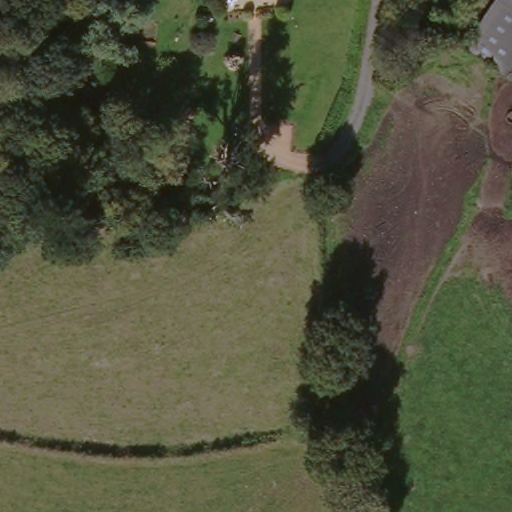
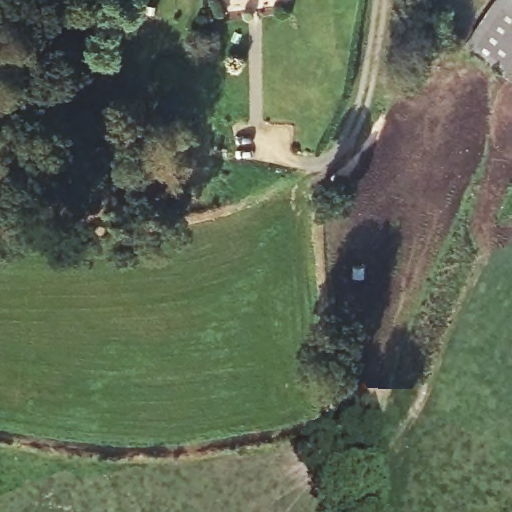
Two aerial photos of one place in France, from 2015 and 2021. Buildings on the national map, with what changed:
unchanged [(512,81),(466,49),(499,0),(512,0),(512,81)]

